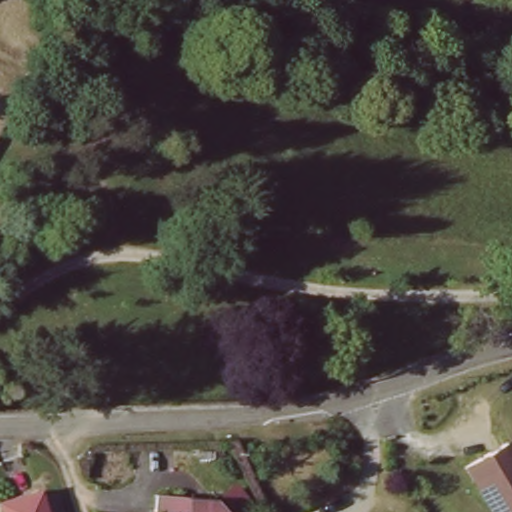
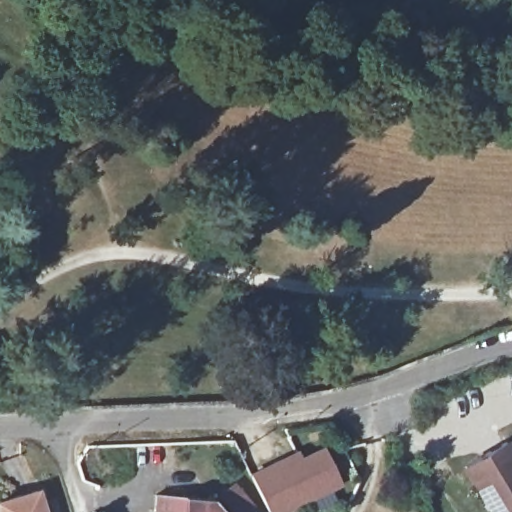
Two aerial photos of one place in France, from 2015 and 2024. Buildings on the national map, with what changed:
unchanged [(466,466),(507,442),(512,451),(512,512),(493,512),(490,505),(466,466)]
new [(298,447),(302,455),(321,444),(342,482),(282,512),(267,512),(248,472),(298,447)]
new [(234,480),(257,506),(249,512),(229,512),(218,499),(213,493),(234,480)]
unchanged [(0,508),(0,502),(38,490),(45,512),(1,512),(0,508)]
unchanged [(160,511),(162,495),(218,499),(229,512),(179,512),(160,511)]

